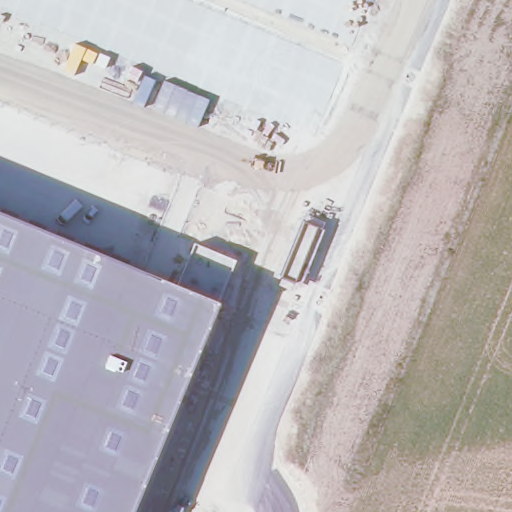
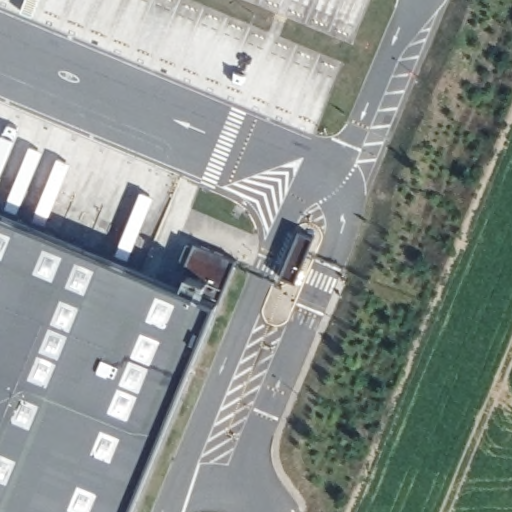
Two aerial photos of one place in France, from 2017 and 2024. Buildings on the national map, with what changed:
unchanged [(217,303),(132,512),(0,512),(0,213),(173,284),(217,303)]
unchanged [(237,260),(217,303),(173,284),(195,243),(237,260)]

